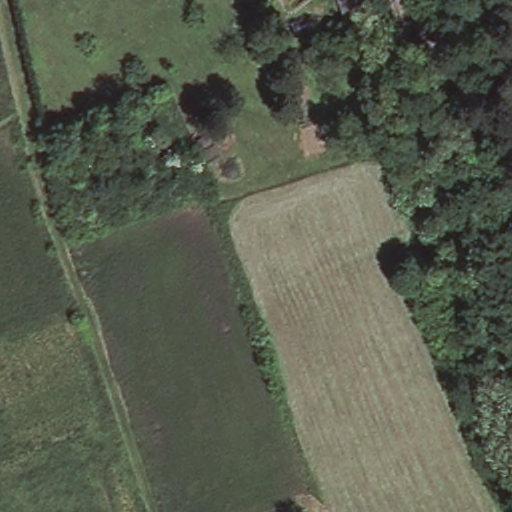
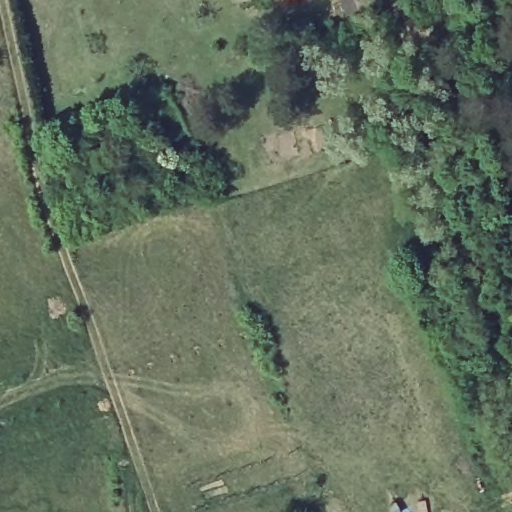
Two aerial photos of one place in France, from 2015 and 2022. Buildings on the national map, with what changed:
unchanged [(345,20),(337,0),(372,0),(375,10),(345,20)]

